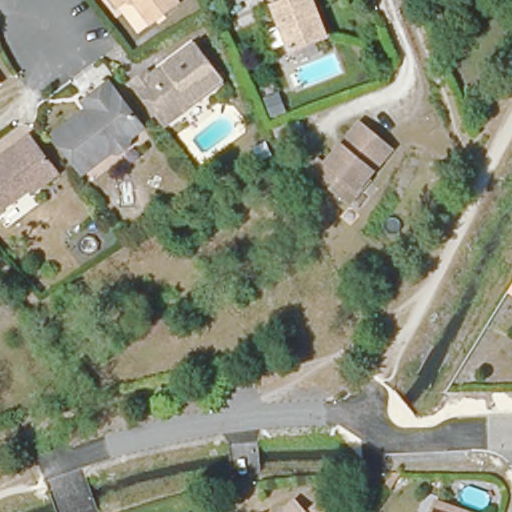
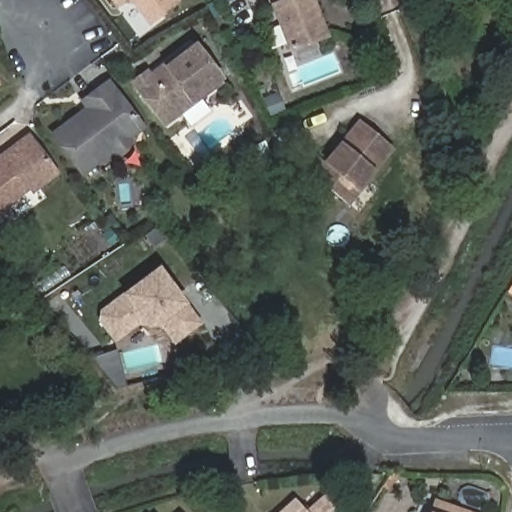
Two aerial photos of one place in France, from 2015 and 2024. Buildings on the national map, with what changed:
unchanged [(136,0),(170,0),(149,16),(136,0)]
unchanged [(283,44),(265,0),(306,0),(318,30),(283,44)]
unchanged [(168,119),(134,78),(148,66),(151,71),(194,36),(224,74),(168,119)]
unchanged [(104,80),(138,125),(124,135),(124,143),(115,149),(108,148),(104,151),(79,171),(49,133),(74,113),(75,113),(84,106),(79,99),(104,80)]
unchanged [(344,203),(305,173),(319,155),(325,160),(359,118),(393,144),(344,203)]
unchanged [(26,193),(0,212),(0,156),(28,134),(58,174),(29,197),(26,193)]
new [(115,344),(98,322),(99,315),(100,309),(120,294),(159,265),(189,304),(204,324),(175,346),(163,329),(139,326),(115,344)]
unchanged [(289,498),(301,511),(319,494),(335,512),(273,512),(289,498)]
unchanged [(433,497),(474,512),(427,512),(433,497)]

